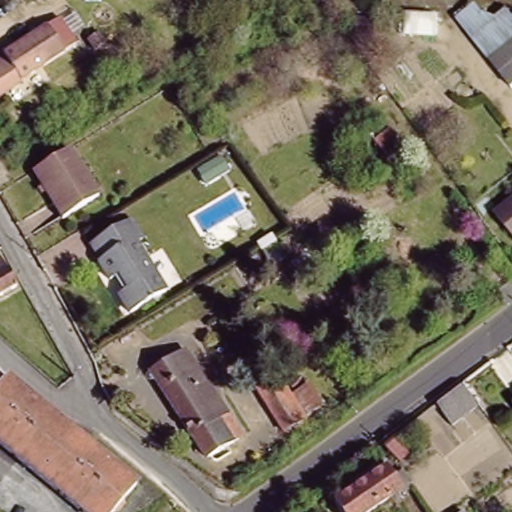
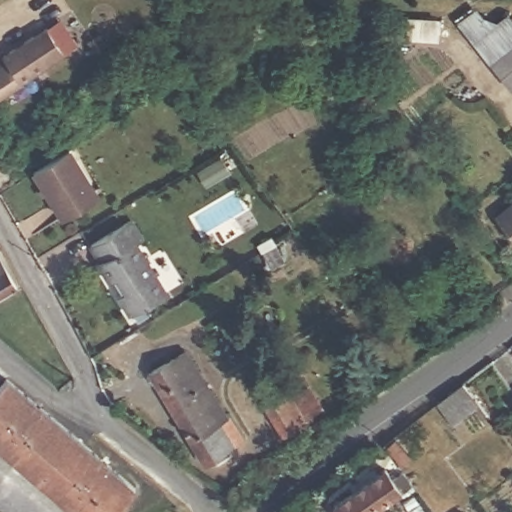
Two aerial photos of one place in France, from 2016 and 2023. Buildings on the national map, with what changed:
unchanged [(487,13),(502,16),(512,10),(512,43),(493,60),(459,18),(478,3),(487,13)]
unchanged [(67,16),(83,40),(70,49),(0,95),(0,58),(54,25),(67,16)]
unchanged [(512,43),(512,81),(493,60),(512,43)]
unchanged [(75,145),(103,192),(68,214),(40,167),(75,145)]
unchanged [(501,214),(512,205),(512,228),(501,214)]
unchanged [(168,290),(132,311),(122,294),(132,289),(125,275),(115,281),(104,260),(106,259),(96,241),(138,217),(150,238),(141,242),(168,290)]
unchanged [(21,283),(0,295),(0,254),(3,252),(21,283)]
unchanged [(203,384),(206,388),(211,385),(228,412),(230,411),(245,435),(228,445),(232,452),(215,463),(210,456),(205,459),(150,369),(185,347),(207,382),(203,384)]
unchanged [(117,512),(89,512),(0,436),(0,390),(12,376),(140,485),(117,512)]
unchanged [(278,378),(305,422),(283,436),(256,392),(278,378)]
unchanged [(480,405),(455,424),(440,402),(464,383),(465,383),(480,405)]
unchanged [(375,512),(346,512),(339,502),(372,481),(368,475),(380,467),(384,473),(392,468),(407,492),(375,512)]

